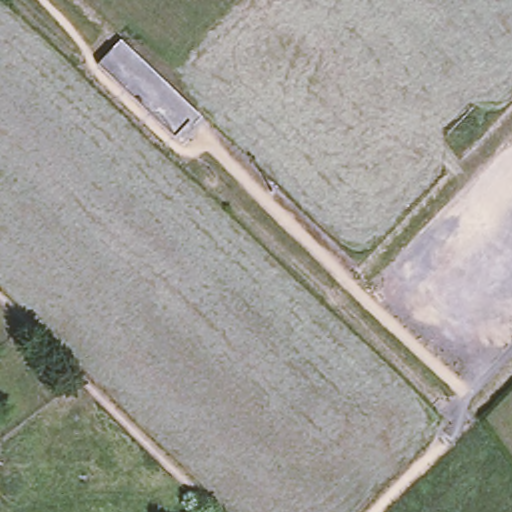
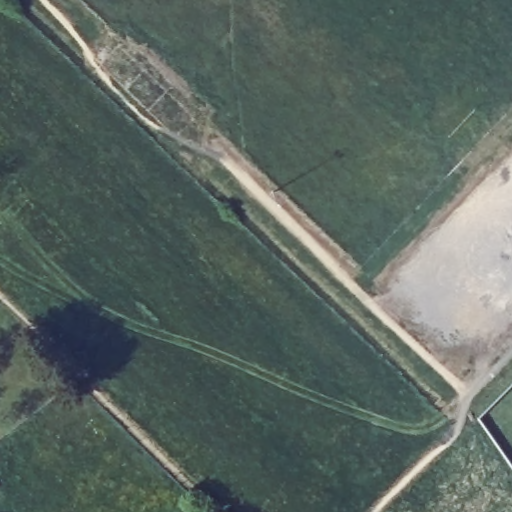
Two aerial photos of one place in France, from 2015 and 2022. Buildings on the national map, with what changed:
demolished [(197,113),(173,135),(99,60),(120,38),(197,113)]

